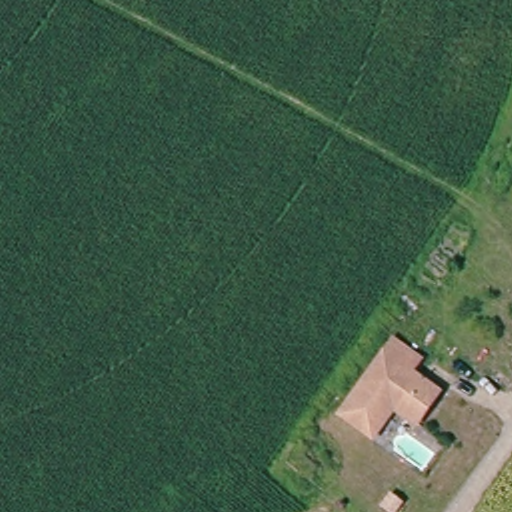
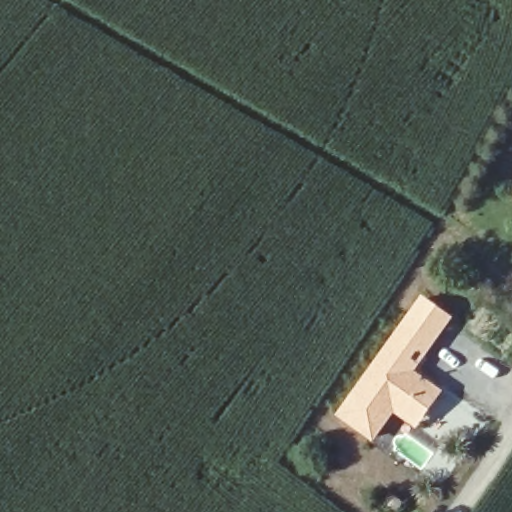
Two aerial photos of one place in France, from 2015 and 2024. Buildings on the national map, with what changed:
new [(453,318),(413,374),(400,364),(409,351),(393,339),(424,297),(453,318)]
unchanged [(392,408),(370,437),(338,413),(393,339),(409,351),(400,364),(426,384),(437,393),(413,424),(402,416),(392,408)]

